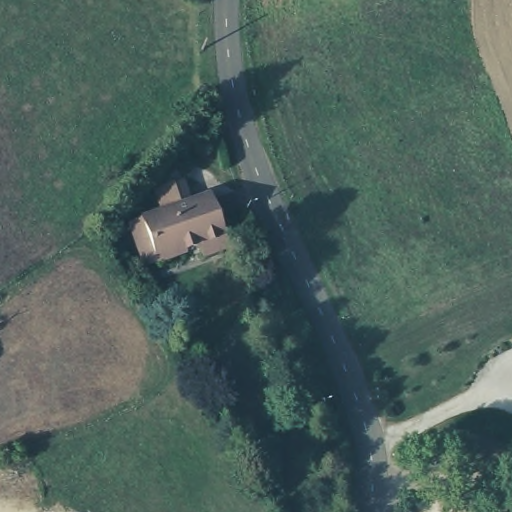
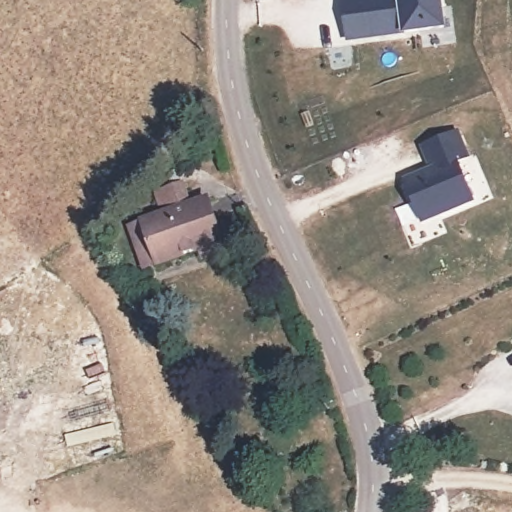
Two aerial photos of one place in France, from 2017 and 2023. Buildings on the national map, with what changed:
new [(442,25),(342,36),(338,0),(439,0),(440,5),(442,25)]
new [(432,169),(422,145),(456,131),(466,156),(455,160),(471,199),(421,219),(405,179),(432,169)]
unchanged [(134,251),(127,228),(157,220),(151,195),(179,187),(185,210),(206,204),(223,252),(197,260),(195,253),(152,265),(139,268),(134,251)]

